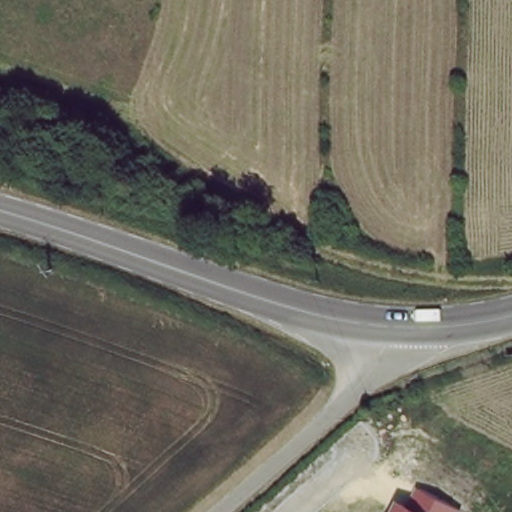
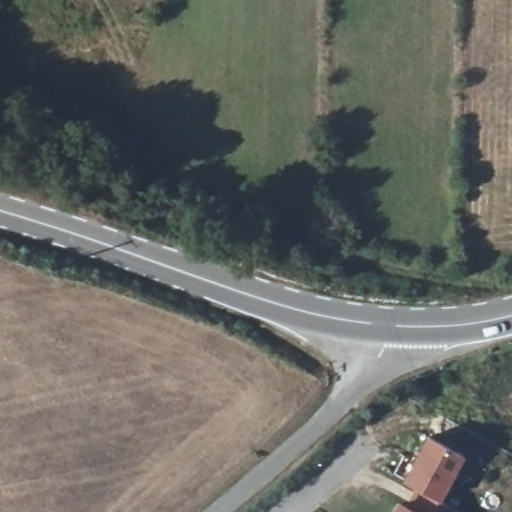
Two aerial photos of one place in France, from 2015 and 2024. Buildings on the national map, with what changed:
new [(425,492),(411,483),(437,437),(474,458),(450,505),(425,492)]
unchanged [(400,498),(416,508),(425,492),(450,505),(463,512),(392,512),(400,498)]

